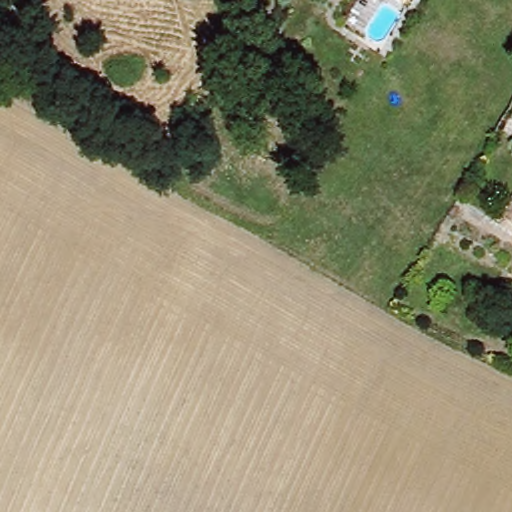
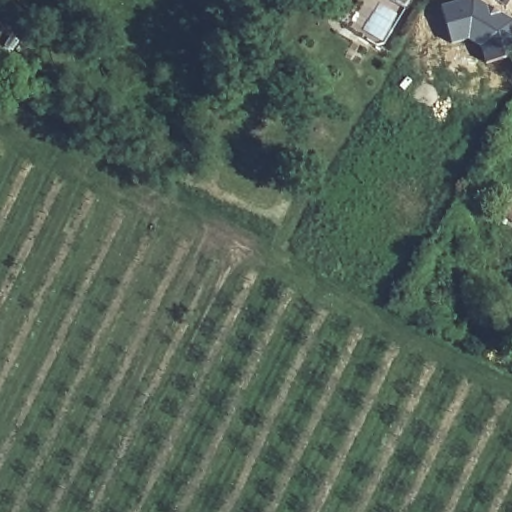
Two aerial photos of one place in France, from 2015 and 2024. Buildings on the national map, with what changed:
unchanged [(274,0),(281,0),(279,3),(274,0)]
new [(483,0),(491,4),(512,15),(512,57),(485,65),(478,48),(474,45),(466,41),(452,46),(439,6),(459,0),(483,0)]
unchanged [(512,138),(512,148),(508,145),(512,138)]

